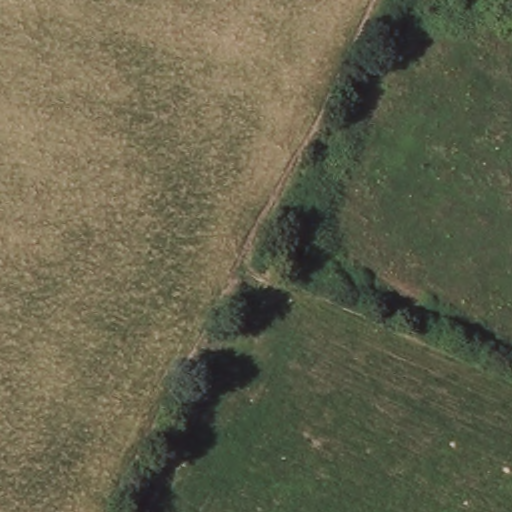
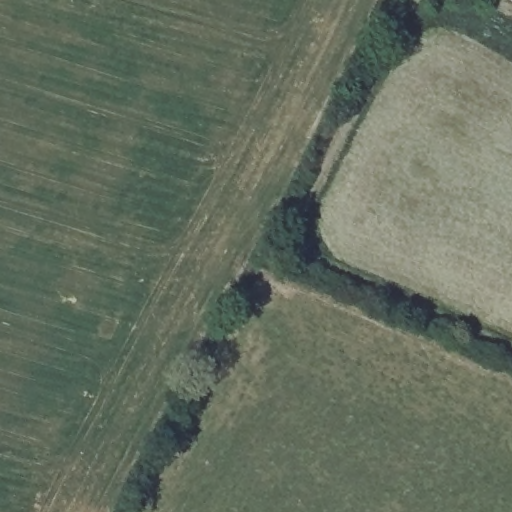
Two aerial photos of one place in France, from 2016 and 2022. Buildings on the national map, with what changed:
unchanged [(507,0),(512,0),(512,3),(507,1),(507,0)]

